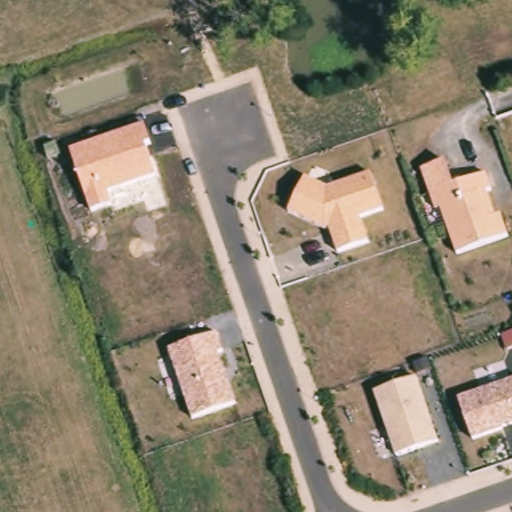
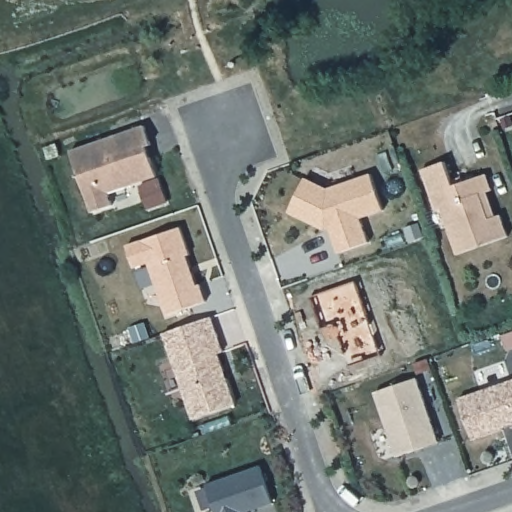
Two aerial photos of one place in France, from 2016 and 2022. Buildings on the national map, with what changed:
unchanged [(71,152),(146,125),(152,145),(148,146),(158,178),(109,195),(113,207),(92,213),(71,152)]
unchanged [(455,189),(434,197),(425,170),(446,163),(455,189)]
unchanged [(331,229),(326,231),(290,214),(307,178),(328,188),(372,173),(384,209),(361,217),(370,244),(339,254),(331,229)]
unchanged [(511,239),(460,257),(444,211),(439,213),(434,197),(489,177),(495,193),(490,195),(499,220),(504,218),(511,239)]
new [(166,314),(149,263),(134,268),(127,244),(182,226),(191,254),(187,255),(197,284),(200,283),(206,302),(166,314)]
unchanged [(192,419),(169,348),(218,331),(224,352),(219,354),(235,402),(192,419)]
unchanged [(439,441),(395,456),(374,391),(419,377),(439,441)]
unchanged [(457,397),(512,379),(512,427),(472,440),(457,397)]
new [(261,467),(274,504),(247,512),(215,512),(207,484),(261,467)]

